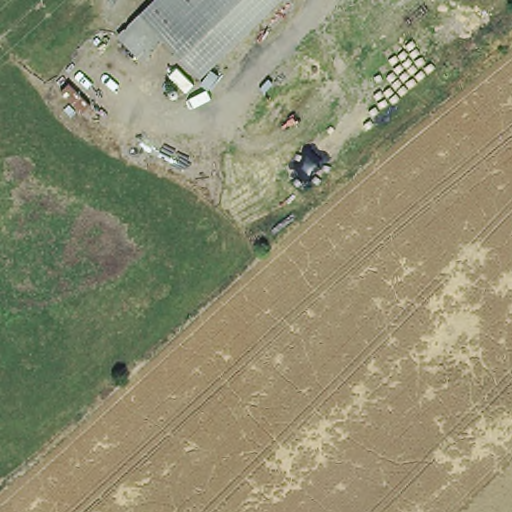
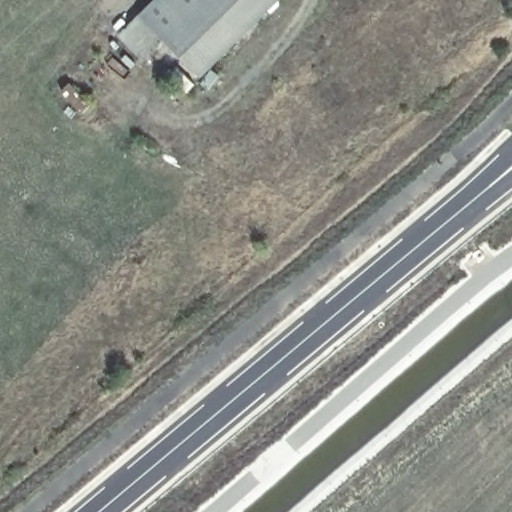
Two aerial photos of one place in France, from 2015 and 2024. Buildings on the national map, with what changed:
unchanged [(197,80),(169,44),(145,67),(115,35),(152,0),(277,0),(197,80)]

